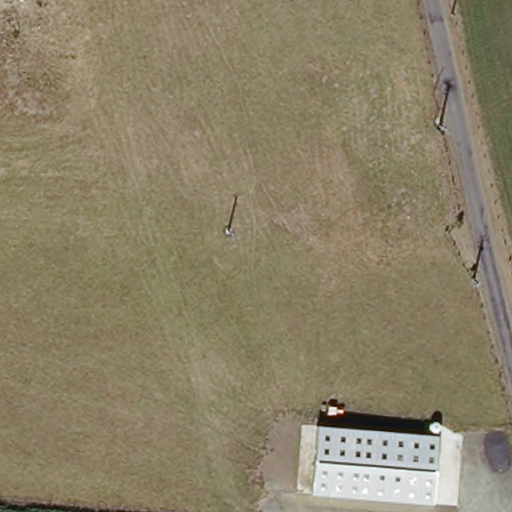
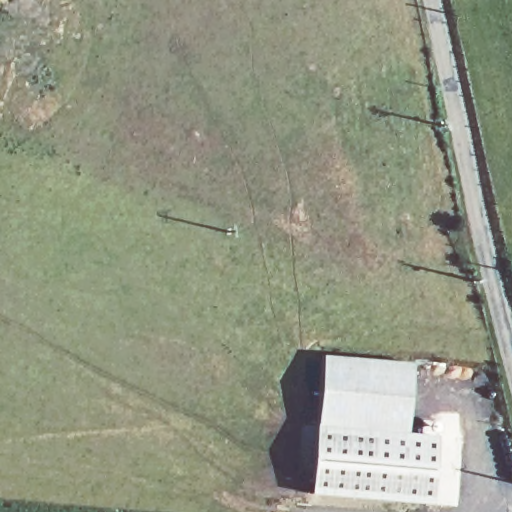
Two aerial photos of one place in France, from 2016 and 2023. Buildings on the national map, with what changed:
new [(415,362),(408,432),(318,424),(324,355),(415,362)]
unchanged [(439,435),(433,505),(311,494),(318,424),(439,435)]

